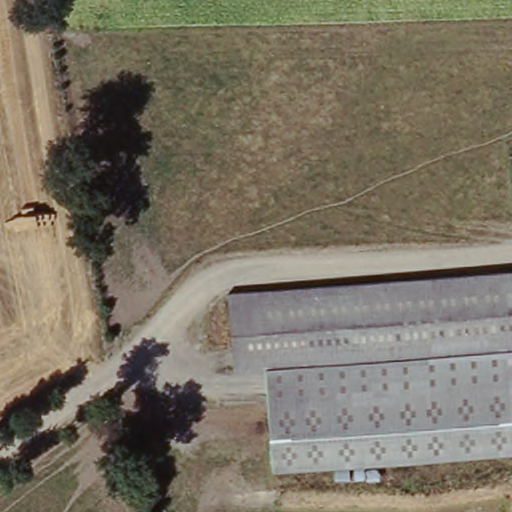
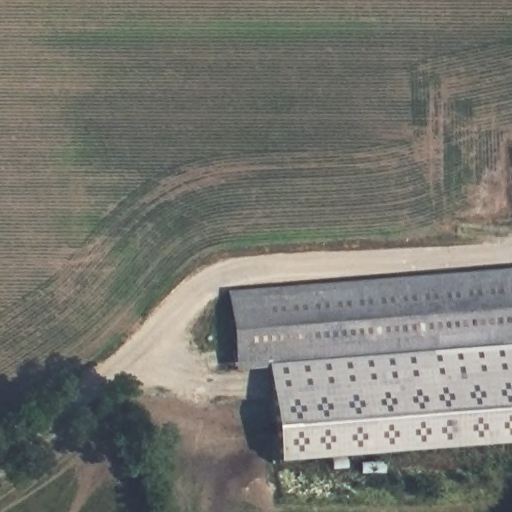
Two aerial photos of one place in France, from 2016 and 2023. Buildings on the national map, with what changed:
unchanged [(236,364),(233,288),(512,276),(512,352),(236,364)]
unchanged [(512,352),(512,440),(277,459),(270,362),(512,352)]

